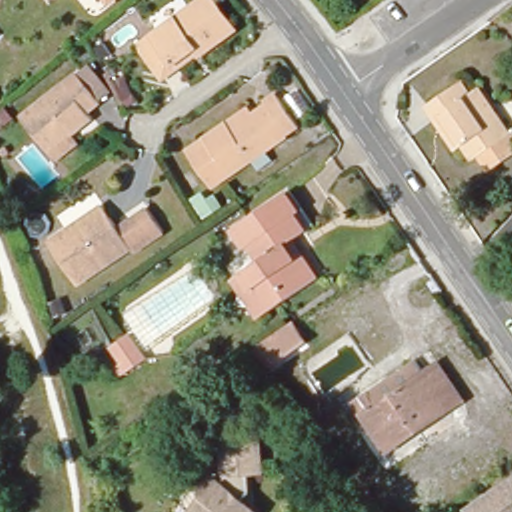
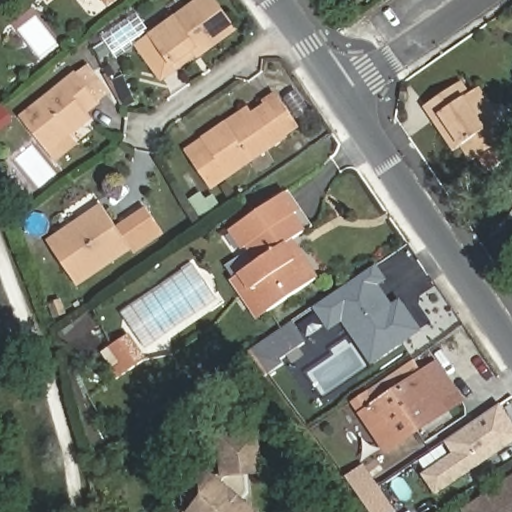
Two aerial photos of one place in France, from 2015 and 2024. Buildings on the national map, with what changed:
unchanged [(111,0),(122,0),(116,5),(111,0)]
unchanged [(147,38),(202,0),(204,0),(228,35),(196,57),(172,74),(167,68),(147,38)]
unchanged [(83,109),(88,115),(46,150),(20,118),(73,73),(95,98),(83,109)]
unchanged [(428,108),(462,86),(471,98),(480,91),(510,134),(512,133),(512,156),(486,172),(482,167),(465,145),(456,152),(436,121),(428,108)]
unchanged [(298,124),(210,184),(192,156),(206,146),(201,139),(226,121),(247,107),(252,113),(278,96),(298,124)]
unchanged [(245,296),(235,281),(259,264),(252,250),(247,252),(235,234),(286,200),(298,218),(294,221),(304,238),(290,247),(301,263),(315,283),(270,315),(261,321),(245,296)]
unchanged [(118,231),(147,212),(162,235),(133,254),(130,250),(79,284),(54,245),(104,211),(118,231)]
new [(370,364),(345,324),(331,333),(324,324),(304,336),(293,320),(378,265),(388,280),(381,285),(392,302),(399,298),(423,330),(370,364)]
unchanged [(307,341),(282,358),(285,362),(267,376),(248,351),(253,347),(254,346),(255,346),(257,345),(293,320),(307,341)]
unchanged [(109,348),(132,337),(147,361),(128,376),(109,348)]
unchanged [(422,374),(440,362),(469,404),(450,417),(422,374)]
unchanged [(387,459),(351,406),(370,392),(379,404),(422,374),(450,417),(387,459)]
new [(423,476),(452,454),(443,444),(501,403),(512,419),(512,443),(436,494),(423,476)]
unchanged [(217,484),(222,475),(219,437),(263,432),(264,477),(250,477),(250,498),(244,503),(217,484)]
new [(396,512),(372,512),(348,479),(364,465),(398,510),(396,512)]
unchanged [(177,508),(203,474),(217,484),(244,503),(257,512),(179,512),(177,508)]
unchanged [(512,512),(475,512),(512,487),(512,512)]

